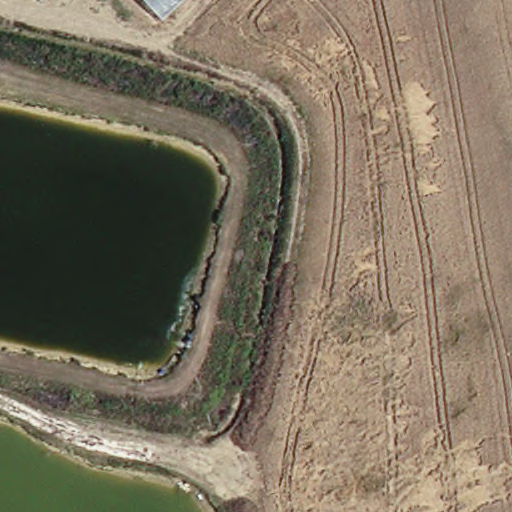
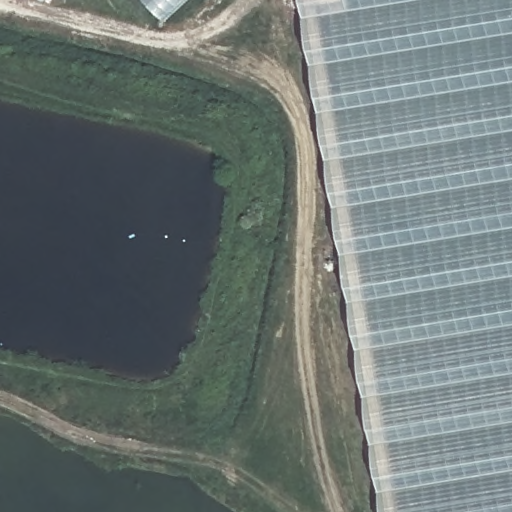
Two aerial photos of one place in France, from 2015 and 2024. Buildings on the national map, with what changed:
unchanged [(159,16),(145,0),(177,0),(159,16)]
new [(377,512),(299,0),(512,0),(512,512),(377,512)]

